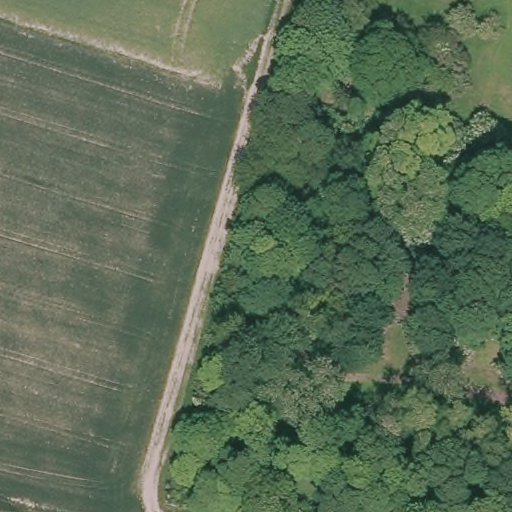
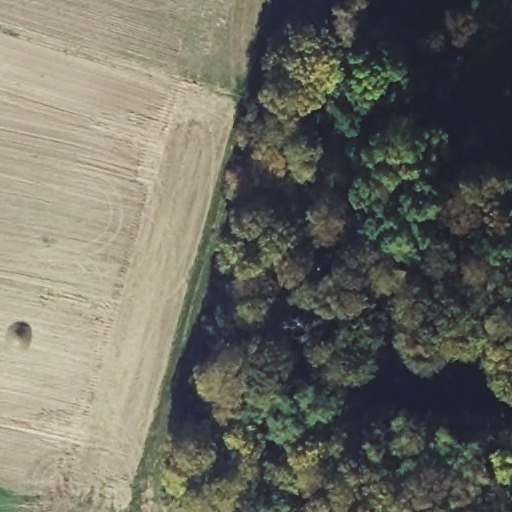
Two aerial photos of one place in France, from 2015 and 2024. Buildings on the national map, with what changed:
unchanged [(438,277),(430,321),(395,315),(406,271),(438,277)]

